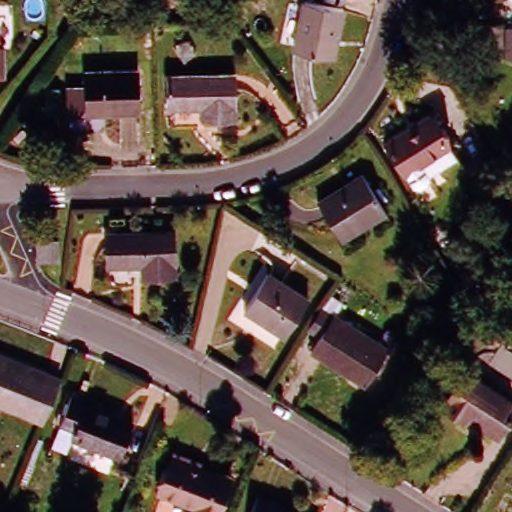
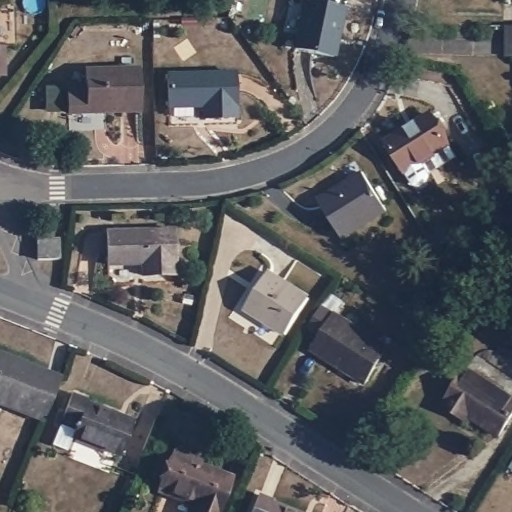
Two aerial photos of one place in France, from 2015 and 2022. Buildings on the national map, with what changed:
unchanged [(342,4),(332,57),(293,49),(303,0),(321,0),(342,4)]
unchanged [(507,28),(512,29),(512,59),(506,58),(507,28)]
unchanged [(3,48),(3,75),(0,75),(0,48),(3,48)]
unchanged [(198,112),(198,100),(168,100),(168,67),(232,67),(232,112),(198,112)]
unchanged [(88,87),(88,70),(138,70),(138,112),(70,112),(70,87),(88,87)]
unchanged [(429,187),(420,192),(415,191),(406,176),(382,140),(423,114),(447,150),(421,167),(430,181),(429,187)]
unchanged [(390,211),(345,239),(320,200),(365,172),(390,211)]
unchanged [(173,269),(140,269),(140,258),(107,259),(106,225),(171,225),(173,269)]
unchanged [(57,263),(35,265),(35,242),(57,241),(57,263)]
unchanged [(307,298),(285,332),(247,308),(267,273),(307,298)]
unchanged [(365,381),(314,349),(320,340),(307,332),(325,303),(337,310),(335,314),(385,346),(365,381)]
unchanged [(61,380),(45,418),(0,400),(0,356),(61,380)]
unchanged [(461,410),(457,415),(440,404),(464,367),(512,398),(512,408),(496,432),(461,410)]
unchanged [(70,437),(73,429),(62,425),(72,399),(132,423),(119,456),(70,437)]
unchanged [(156,491),(170,455),(237,482),(225,512),(190,512),(192,506),(156,491)]
unchanged [(270,502),(268,506),(284,512),(246,512),(252,495),(270,502)]

